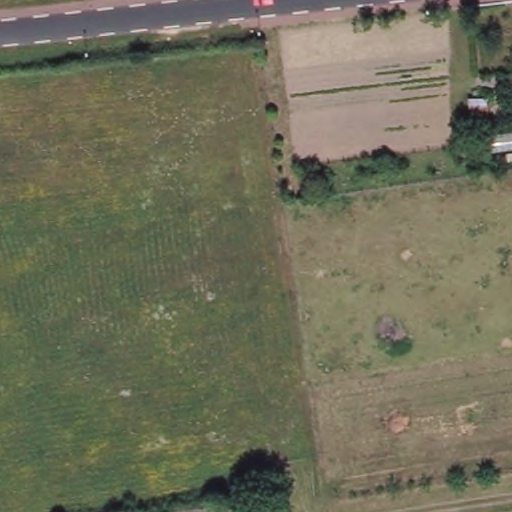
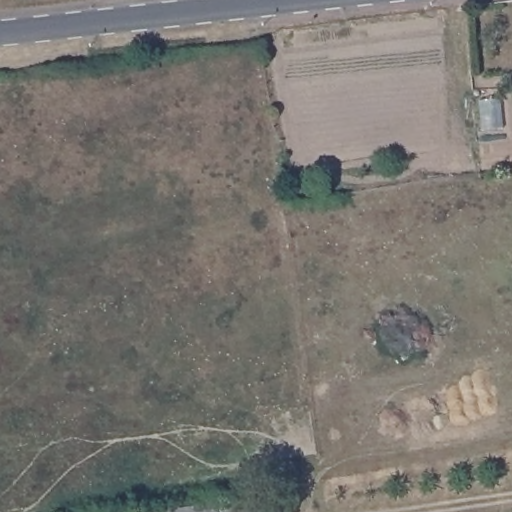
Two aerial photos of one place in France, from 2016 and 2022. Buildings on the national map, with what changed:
unchanged [(254,495),(256,512),(148,512),(254,495)]

